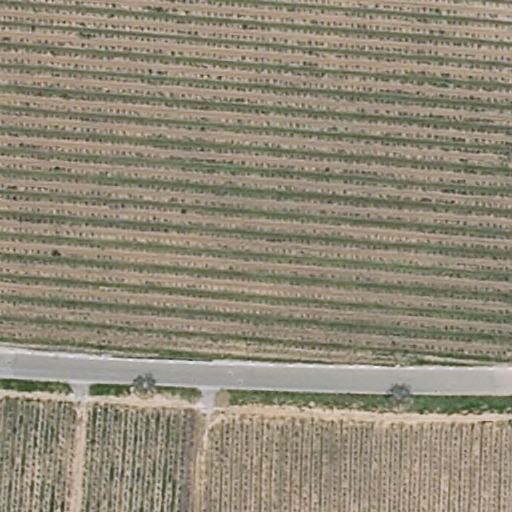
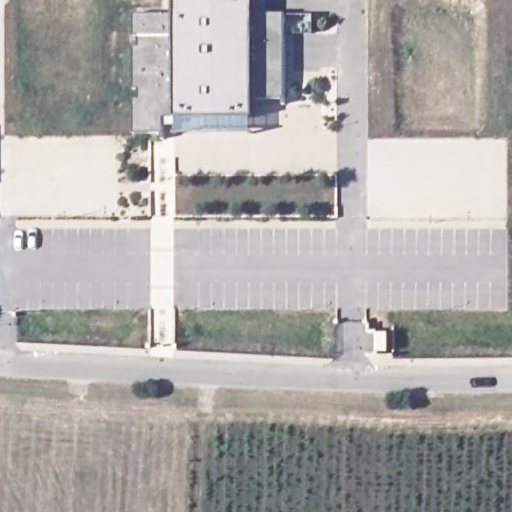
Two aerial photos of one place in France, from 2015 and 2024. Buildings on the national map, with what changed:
new [(252,99),(252,116),(175,118),(165,118),(165,134),(134,133),(135,15),(175,16),(175,0),(251,0),(251,15),(283,15),(285,99),(252,99)]

